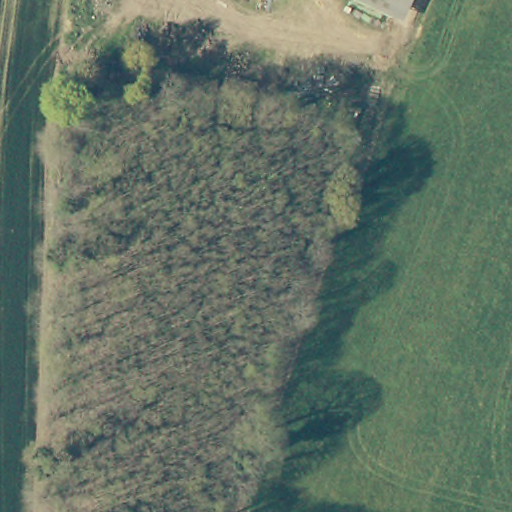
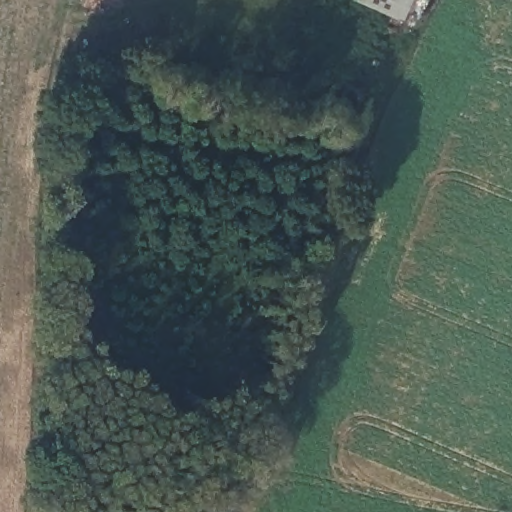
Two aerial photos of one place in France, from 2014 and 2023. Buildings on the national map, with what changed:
unchanged [(401,21),(353,0),(354,0),(410,0),(401,21)]

